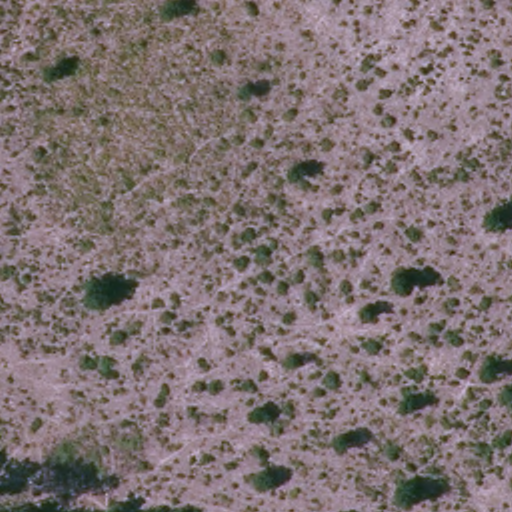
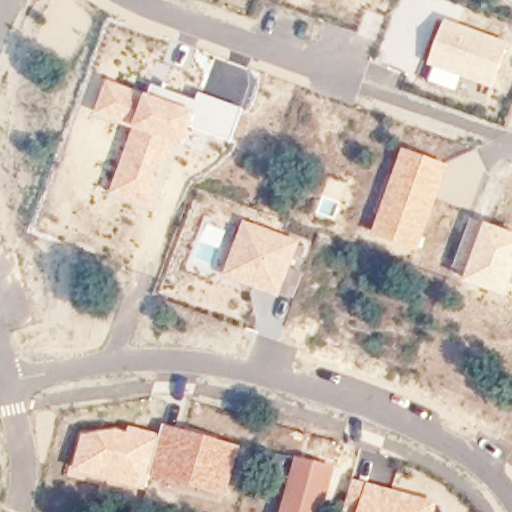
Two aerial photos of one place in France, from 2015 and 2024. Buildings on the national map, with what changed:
new [(506,43),(492,82),(433,63),(447,22),(506,43)]
new [(105,80),(147,95),(152,82),(196,100),(191,112),(196,114),(191,127),(184,148),(177,147),(153,211),(108,194),(132,130),(91,115),(105,80)]
new [(196,114),(191,112),(196,100),(200,91),(244,109),(230,142),(191,127),(196,114)]
new [(402,148),(450,166),(417,252),(368,235),(402,148)]
new [(507,298),(462,282),(464,277),(450,271),(470,219),(485,224),(512,234),(512,289),(511,289),(507,298)]
new [(297,241),(277,294),(226,277),(248,223),(297,241)]
new [(85,434),(117,430),(129,432),(130,425),(164,432),(152,476),(147,492),(75,472),(85,434)]
new [(241,447),(229,497),(204,491),(207,478),(184,474),(182,482),(152,476),(165,428),(241,447)]
new [(295,457),(335,467),(329,496),(325,512),(280,512),(295,457)]
new [(352,479),(437,502),(434,512),(343,512),(352,479)]

